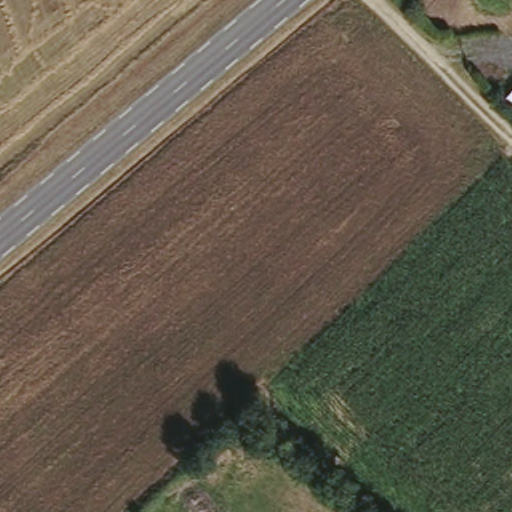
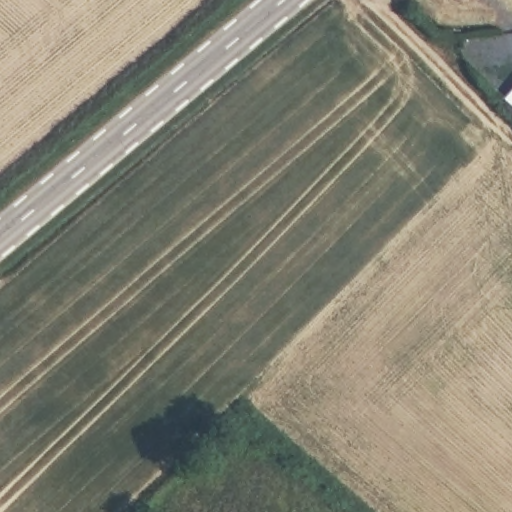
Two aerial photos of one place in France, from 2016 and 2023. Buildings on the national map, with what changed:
unchanged [(512,92),(512,105),(506,99),(512,92)]

